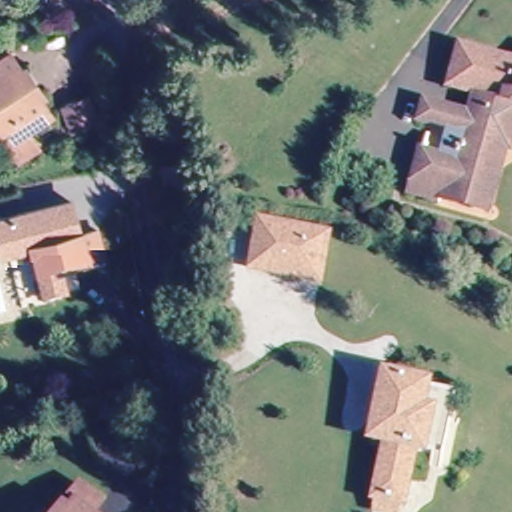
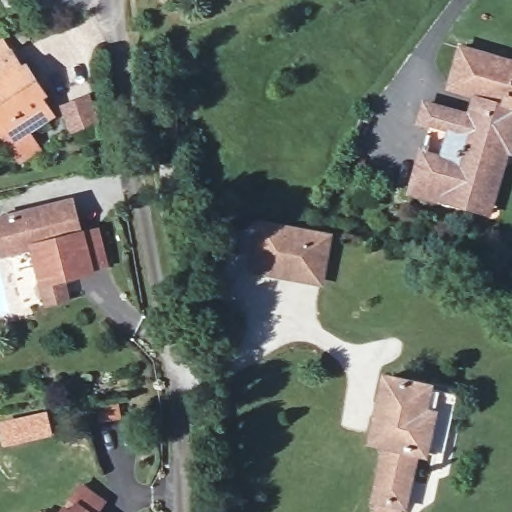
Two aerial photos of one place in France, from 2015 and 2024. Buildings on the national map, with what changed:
unchanged [(474,209),(436,198),(435,200),(404,192),(405,190),(416,149),(438,155),(437,159),(454,164),(462,134),(416,120),(420,103),(464,115),(470,94),(444,86),(456,45),(501,59),(499,66),(508,69),(512,66),(512,132),(507,151),(502,150),(485,212),(474,209)]
unchanged [(0,142),(0,52),(4,49),(15,67),(19,64),(37,94),(33,98),(43,114),(18,129),(28,146),(9,158),(0,142)]
unchanged [(61,131),(54,106),(79,99),(88,124),(61,131)]
unchanged [(158,113),(173,109),(177,134),(161,137),(158,113)]
unchanged [(93,264),(94,269),(60,275),(61,281),(65,280),(69,294),(49,299),(36,241),(6,248),(0,222),(0,215),(75,198),(79,216),(82,231),(100,228),(107,262),(93,264)]
unchanged [(302,278),(255,269),(263,224),(329,237),(323,267),(321,281),(302,278)]
unchanged [(0,310),(0,263),(10,308),(0,310)]
unchanged [(376,506),(379,493),(391,438),(376,435),(391,370),(435,381),(430,404),(440,406),(431,447),(422,444),(410,499),(407,512),(402,512),(376,506)]
new [(54,436),(4,447),(0,429),(0,422),(49,411),(54,436)]
unchanged [(77,504),(71,499),(80,487),(103,503),(96,512),(71,512),(77,504)]
unchanged [(63,510),(66,512),(62,512),(63,510)]

